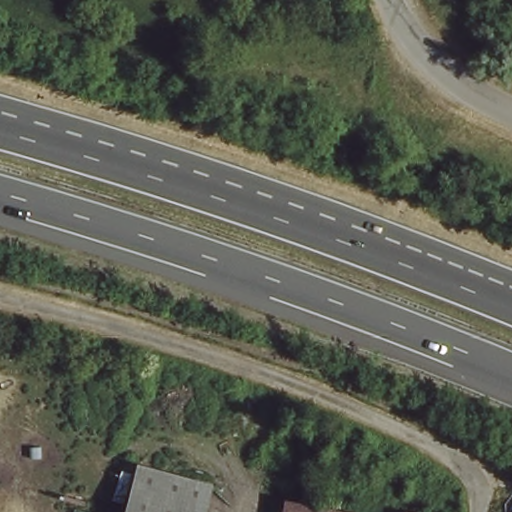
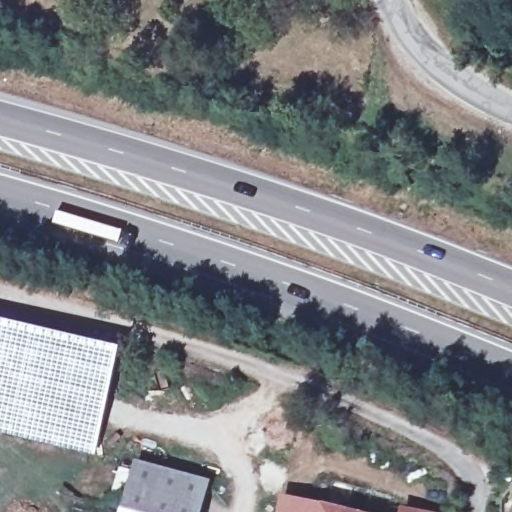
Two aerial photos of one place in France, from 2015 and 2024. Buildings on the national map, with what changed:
new [(0,326),(118,353),(95,456),(0,434),(0,326)]
unchanged [(132,465),(205,484),(197,512),(119,512),(132,465)]
unchanged [(284,500),(335,512),(282,512),(284,500)]
new [(512,505),(512,512),(509,512),(512,505)]

